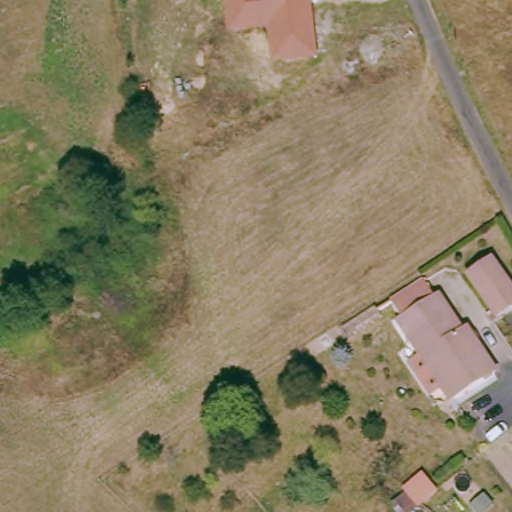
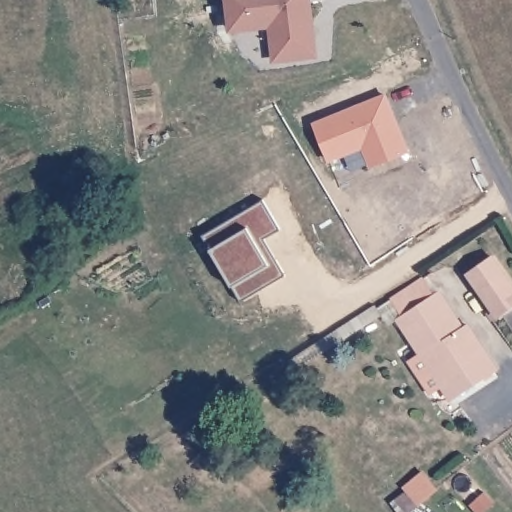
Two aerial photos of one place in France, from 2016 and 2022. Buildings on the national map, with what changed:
unchanged [(311,6),(317,59),(272,64),(267,31),(228,34),(225,0),(321,0),(322,5),(311,6)]
new [(313,122),(388,94),(410,151),(374,168),(364,149),(329,161),(313,122)]
new [(233,287),(212,250),(203,236),(262,201),(280,229),(264,239),(284,275),(242,301),(233,287)]
unchanged [(495,255),(512,283),(512,306),(498,315),(470,271),(495,255)]
unchanged [(447,386),(435,393),(415,360),(428,351),(407,316),(411,314),(400,298),(434,277),(445,293),(449,290),(470,326),(473,324),(500,370),(460,396),(455,399),(447,386)]
unchanged [(408,495),(405,490),(425,471),(440,488),(423,506),(428,512),(400,512),(397,509),(408,495)]

